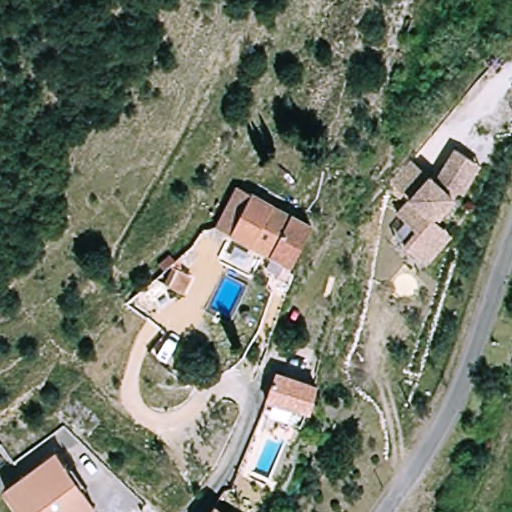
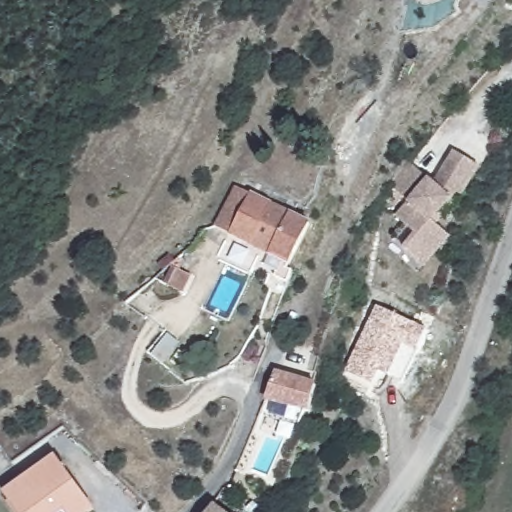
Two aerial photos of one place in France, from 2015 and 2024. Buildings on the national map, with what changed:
unchanged [(413,262),(400,249),(413,236),(395,217),(409,204),(392,186),(414,165),(431,183),(436,187),(439,184),(458,157),(477,171),(482,174),(463,201),(459,199),(452,205),(431,225),(434,228),(441,235),(448,242),(419,269),(413,262)]
unchanged [(288,283),(281,279),(275,277),(278,272),(266,266),(271,256),(216,226),(236,187),(310,226),(289,266),(294,268),(288,283)]
unchanged [(431,225),(452,205),(455,209),(434,228),(431,225)]
unchanged [(156,279),(163,282),(171,267),(169,267),(189,245),(206,253),(184,272),(194,277),(185,294),(168,287),(163,298),(149,292),(153,281),(156,279)]
new [(388,375),(379,371),(373,384),(344,371),(376,305),(427,329),(416,351),(402,381),(388,375)]
demolished [(171,325),(193,342),(171,371),(148,355),(171,325)]
unchanged [(318,385),(306,423),(298,420),(301,412),(266,401),(276,372),(318,385)]
unchanged [(55,455),(95,510),(92,512),(19,512),(4,491),(55,455)]
unchanged [(229,512),(212,512),(217,503),(229,512)]

